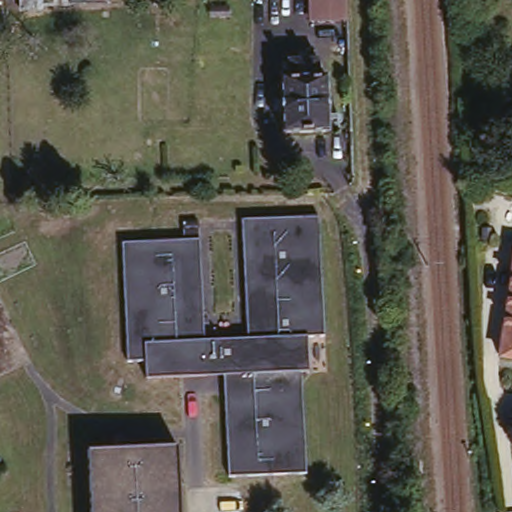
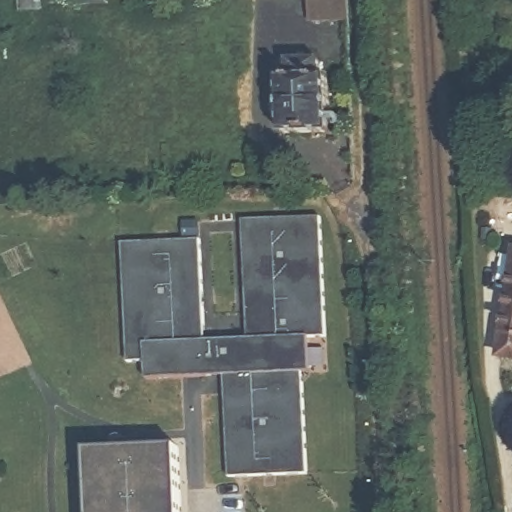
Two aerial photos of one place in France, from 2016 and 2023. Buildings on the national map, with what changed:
unchanged [(90,14),(10,16),(9,0),(110,0),(110,13),(90,14)]
unchanged [(347,0),(347,20),(306,20),(306,0),(347,0)]
unchanged [(327,83),(333,82),(336,137),(290,139),(288,84),(295,84),(293,65),(326,64),(327,83)]
unchanged [(217,375),(140,380),(140,363),(124,366),(117,242),(200,238),(205,339),(245,335),(240,218),(317,214),(323,335),(305,335),(307,373),(300,373),(305,470),(222,477),(217,375)]
unchanged [(512,258),(512,359),(492,354),(512,258)]
unchanged [(90,449),(180,448),(182,512),(93,512),(90,449)]

